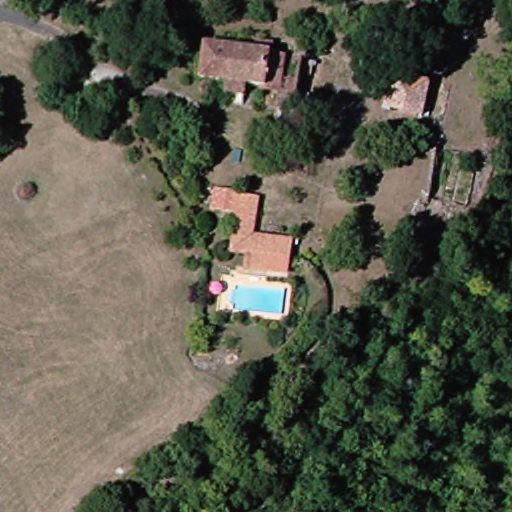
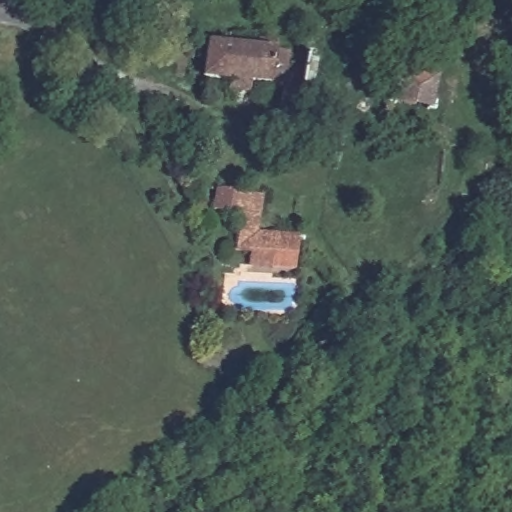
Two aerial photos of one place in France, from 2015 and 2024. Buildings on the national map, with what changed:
unchanged [(277,58),(271,91),(192,78),(198,45),(277,58)]
unchanged [(382,111),(389,84),(395,85),(397,76),(414,80),(415,72),(428,75),(427,84),(416,118),(382,111)]
unchanged [(296,101),(292,127),(270,124),(274,97),(296,101)]
unchanged [(259,278),(261,260),(226,254),(230,217),(209,213),(212,194),(260,201),(253,240),(287,245),(284,263),(282,281),(259,278)]

